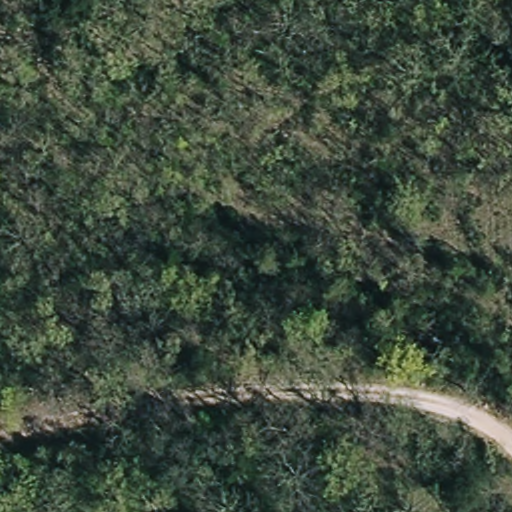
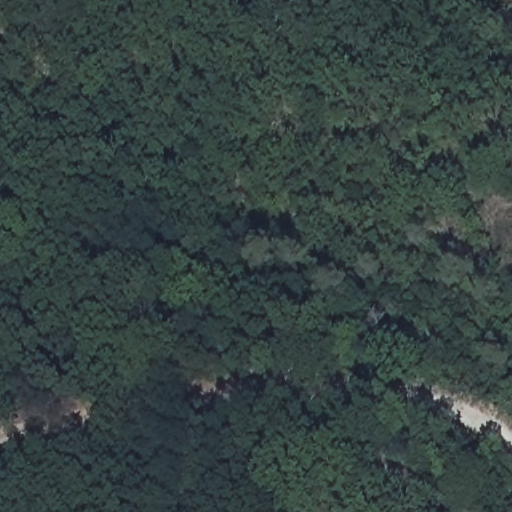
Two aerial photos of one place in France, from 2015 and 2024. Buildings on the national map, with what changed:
[]

